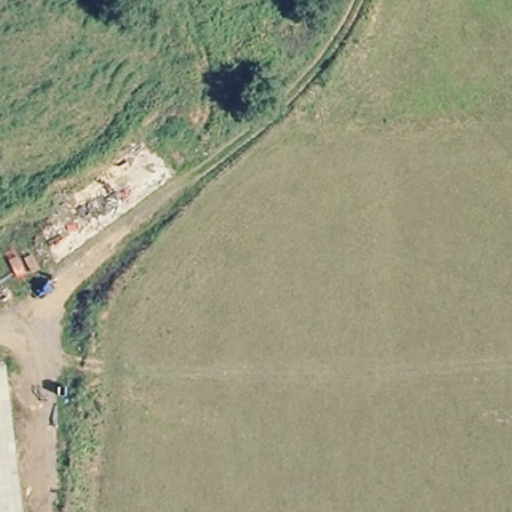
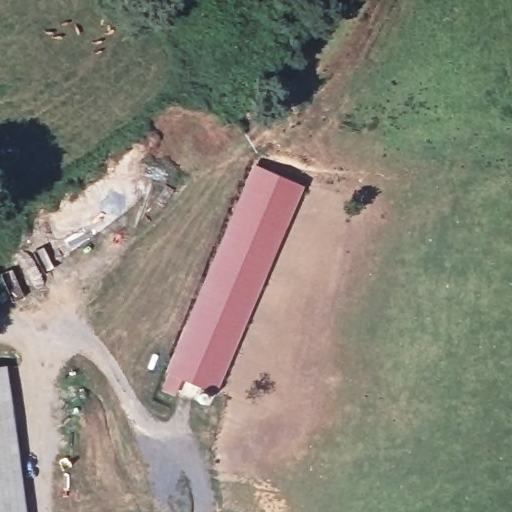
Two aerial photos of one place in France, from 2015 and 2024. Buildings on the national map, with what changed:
new [(257,177),(301,196),(212,403),(182,390),(175,405),(162,398),(257,177)]
unchanged [(0,366),(5,365),(9,392),(0,394),(0,366)]
unchanged [(0,394),(9,392),(27,512),(10,512),(0,444),(0,394)]
unchanged [(0,444),(10,512),(0,512),(0,444)]

